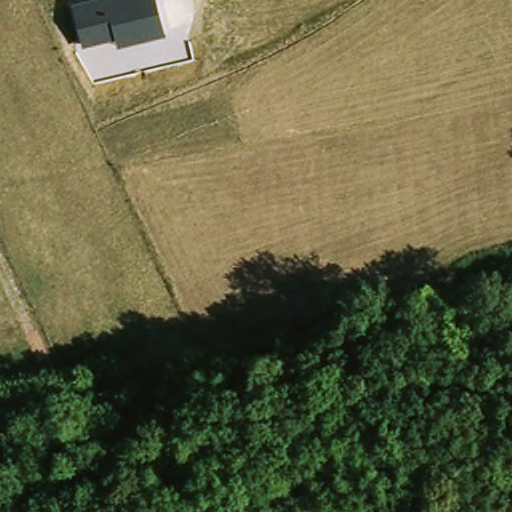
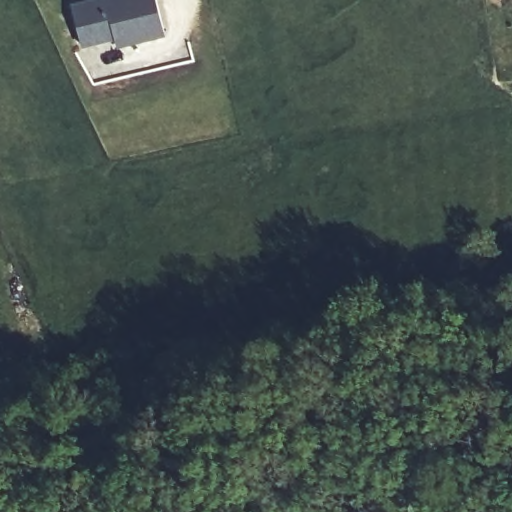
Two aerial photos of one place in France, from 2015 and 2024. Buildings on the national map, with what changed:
unchanged [(75,0),(157,0),(167,34),(117,47),(115,38),(82,46),(71,1),(75,0)]

